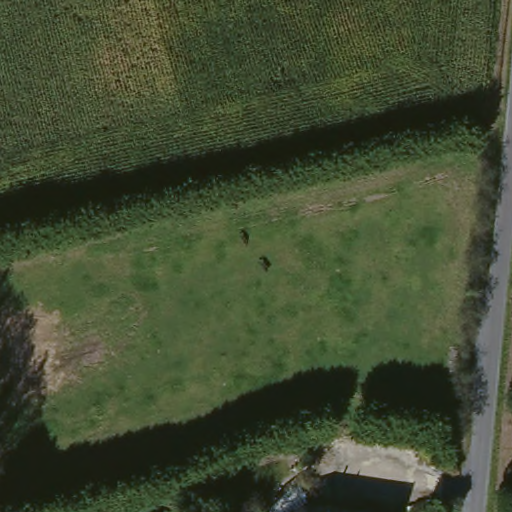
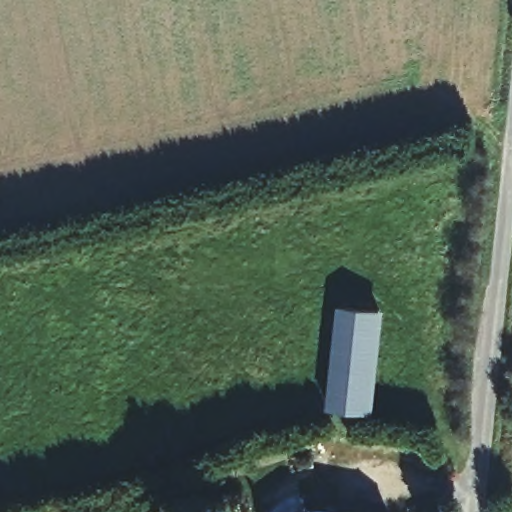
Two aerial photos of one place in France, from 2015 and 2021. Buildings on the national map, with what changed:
new [(338,304),(384,310),(374,411),(328,406),(338,304)]
unchanged [(331,512),(304,512),(310,508),(331,512)]

